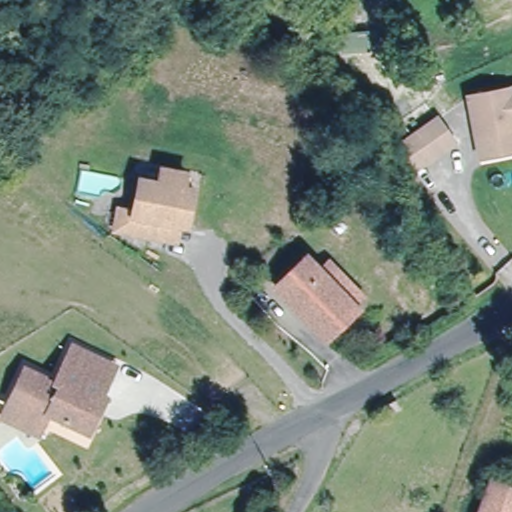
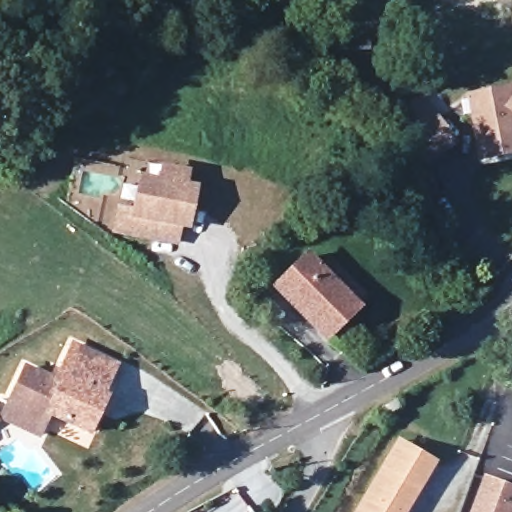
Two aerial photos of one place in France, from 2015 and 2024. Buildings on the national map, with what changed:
unchanged [(512,88),(512,152),(484,160),(469,99),(512,88)]
unchanged [(459,142),(418,174),(394,146),(437,115),(459,142)]
unchanged [(144,237),(111,230),(116,207),(132,211),(139,182),(155,185),(158,172),(183,177),(180,192),(189,194),(182,230),(174,228),(170,244),(144,237)]
unchanged [(313,337),(297,320),(282,303),(268,287),(299,260),(312,275),(322,266),(352,298),(342,307),(343,310),(347,313),(316,341),(313,337)]
unchanged [(32,364),(61,378),(79,343),(99,353),(120,363),(114,377),(108,392),(110,393),(94,430),(53,409),(48,418),(42,431),(7,413),(14,401),(32,364)]
new [(395,402),(399,412),(384,420),(379,412),(395,402)]
unchanged [(0,416),(0,414),(1,415),(0,416)]
new [(412,512),(355,512),(400,437),(442,462),(412,512)]
unchanged [(479,512),(491,484),(512,493),(512,512),(479,512)]

